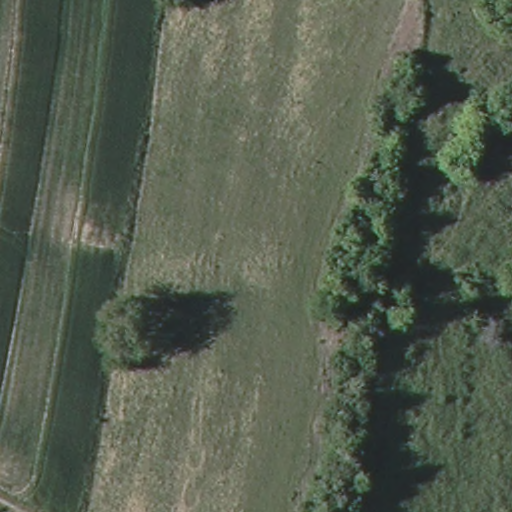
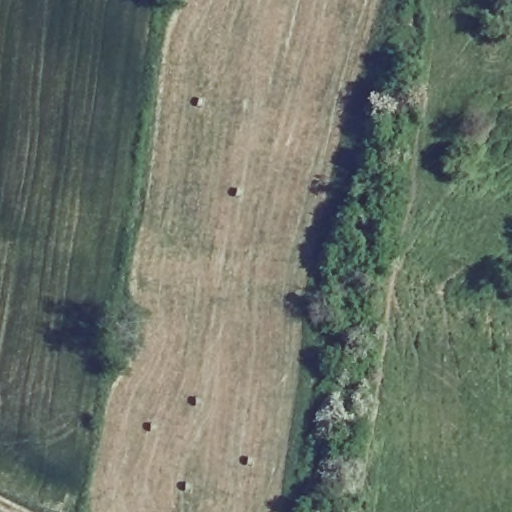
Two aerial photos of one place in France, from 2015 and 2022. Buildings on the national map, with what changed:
[]

